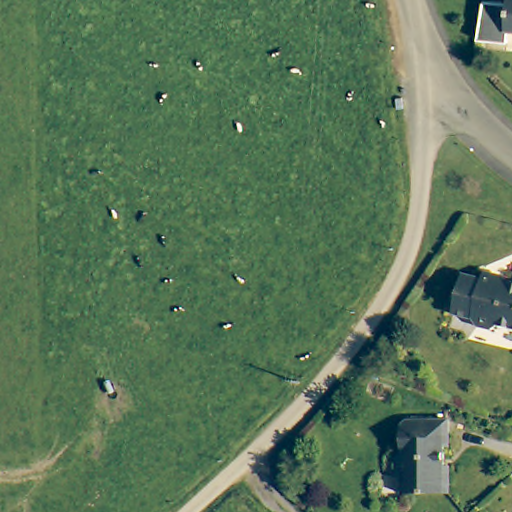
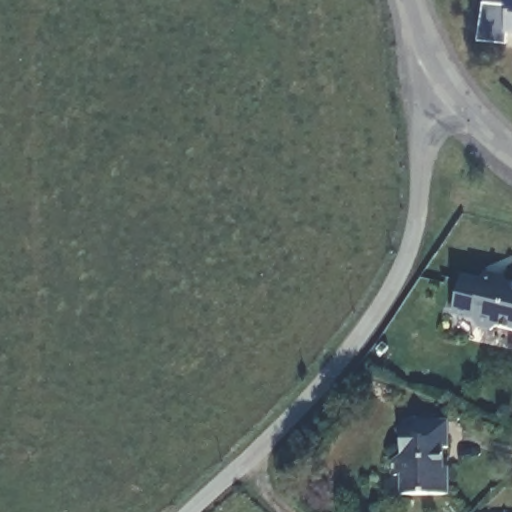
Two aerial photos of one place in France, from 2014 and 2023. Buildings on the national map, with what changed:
unchanged [(506,40),(478,38),(479,24),(481,0),(502,0),(509,0),(510,0),(512,0),(512,28),(507,27),(506,40)]
unchanged [(497,327),(492,332),(476,330),(473,326),(474,321),(454,316),(461,275),(482,280),(483,276),(512,282),(512,330),(497,327)]
unchanged [(454,422),(454,446),(444,446),(443,469),(453,470),(451,496),(407,495),(403,489),(404,474),(394,474),(394,451),(406,451),(408,420),(454,422)]

